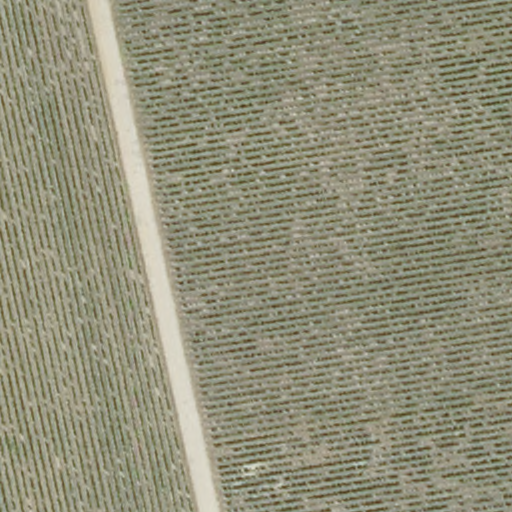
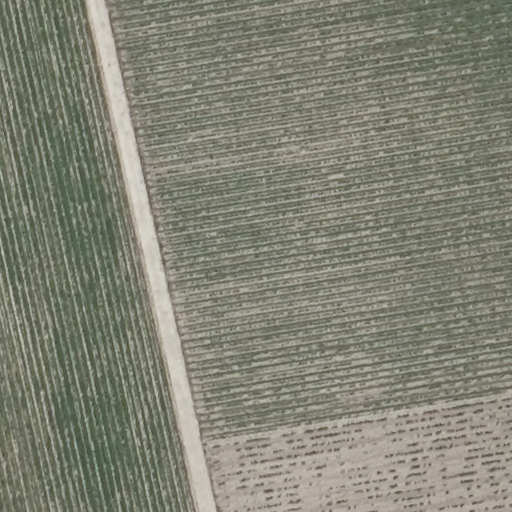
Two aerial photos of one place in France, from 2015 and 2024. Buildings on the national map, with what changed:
[]

